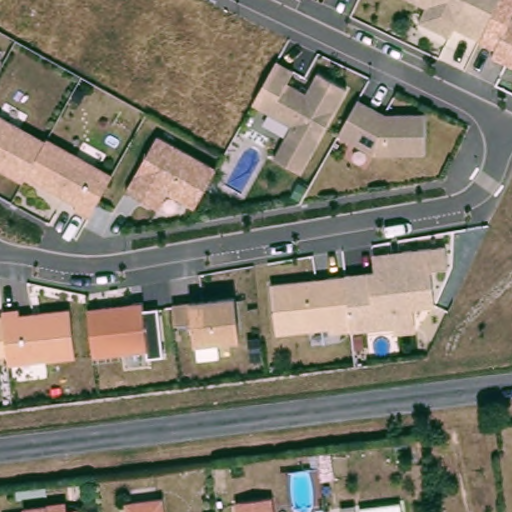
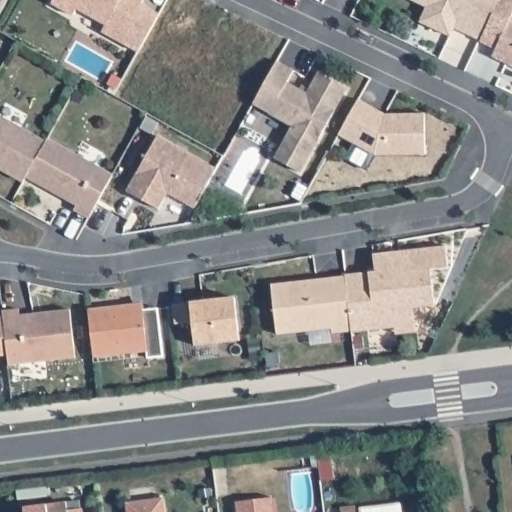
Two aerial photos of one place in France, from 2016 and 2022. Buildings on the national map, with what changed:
new [(136,0),(162,15),(141,52),(105,33),(109,26),(79,10),(75,16),(54,4),(56,0),(136,0)]
unchanged [(458,28),(454,35),(421,20),(429,5),(417,0),(503,0),(484,39),(458,28)]
unchanged [(512,14),(512,66),(493,57),(511,14),(512,14)]
unchanged [(298,68),(290,80),(310,91),(320,71),(350,87),(304,172),(276,157),(296,124),(254,104),(279,60),(298,68)]
unchanged [(387,112),(428,110),(428,155),(379,154),(340,135),(361,99),(387,112)]
unchanged [(94,216),(78,207),(79,202),(28,177),(25,180),(0,166),(0,112),(114,171),(94,216)]
unchanged [(219,166),(197,207),(171,192),(162,207),(131,190),(161,135),(219,166)]
unchanged [(450,246),(451,262),(436,265),(439,305),(418,306),(419,332),(399,333),(397,325),(354,331),(347,272),(379,268),(377,252),(450,246)]
unchanged [(333,333),(331,327),(277,332),(272,282),(347,272),(354,331),(333,333)]
unchanged [(237,294),(240,340),(195,345),(194,320),(175,322),(173,301),(237,294)]
unchanged [(145,302),(145,307),(161,306),(166,357),(149,356),(148,350),(96,356),(92,308),(145,302)]
unchanged [(5,309),(23,308),(24,313),(75,307),(79,358),(11,365),(11,354),(0,355),(0,313),(5,312),(5,309)]
unchanged [(131,497),(169,493),(171,512),(133,512),(131,497)]
unchanged [(240,498),(277,493),(279,512),(242,512),(240,498)]
unchanged [(29,503),(71,498),(72,505),(87,503),(88,512),(30,512),(29,503)]

